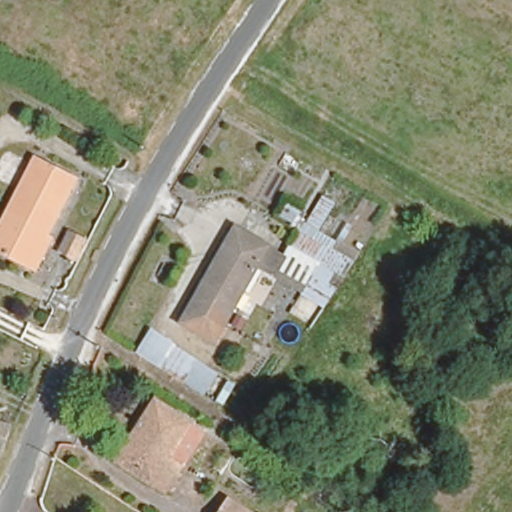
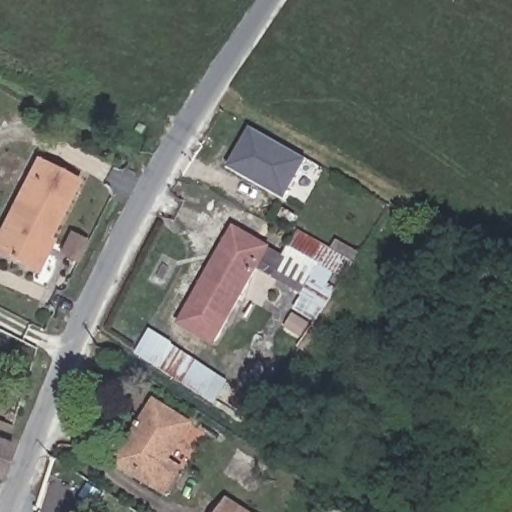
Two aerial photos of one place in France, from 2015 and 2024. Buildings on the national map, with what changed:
new [(252,128),(308,160),(285,200),(230,168),(252,128)]
unchanged [(36,273),(23,267),(0,255),(0,235),(36,165),(73,186),(46,239),(51,242),(36,273)]
unchanged [(326,312),(299,297),(306,286),(271,275),(256,301),(243,294),(213,348),(176,325),(231,228),(287,257),(308,222),(328,191),(343,201),(323,231),(363,256),(326,312)]
unchanged [(196,404),(152,375),(136,365),(132,362),(148,337),(168,349),(166,353),(210,382),(196,404)]
unchanged [(133,436),(153,404),(190,427),(169,461),(182,469),(165,497),(146,485),(114,465),(133,436)]
unchanged [(0,447),(0,422),(8,425),(0,447)]
unchanged [(229,504),(242,512),(224,512),(229,504)]

